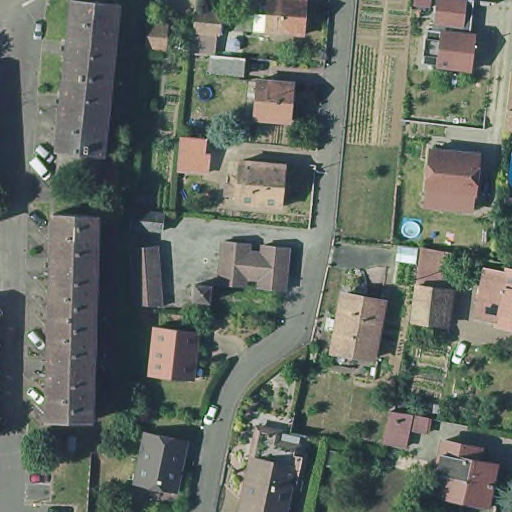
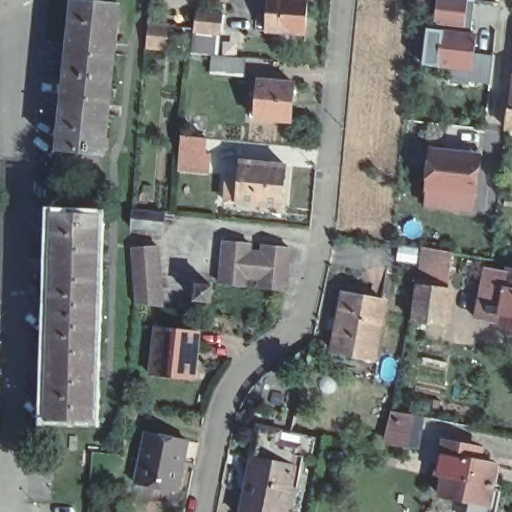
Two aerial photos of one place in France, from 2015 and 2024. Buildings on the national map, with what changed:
unchanged [(76,0),(122,0),(107,148),(62,144),(76,0)]
unchanged [(271,0),(310,0),(308,29),(270,26),(271,0)]
unchanged [(468,29),(477,29),(477,73),(439,73),(442,22),(434,21),(437,0),(468,0),(468,29)]
unchanged [(195,12),(219,16),(216,35),(192,31),(195,12)]
unchanged [(211,57),(240,59),(239,75),(209,73),(211,57)]
unchanged [(267,75),(302,78),(299,115),(263,112),(267,75)]
unchanged [(184,140),(210,142),(207,176),(181,174),(184,140)]
unchanged [(455,209),(429,206),(430,191),(429,191),(434,149),(460,152),(483,155),(478,197),(477,196),(466,195),(465,210),(455,209)]
unchanged [(230,181),(237,181),(237,175),(242,175),(244,160),(261,161),(261,159),(272,160),(272,162),(290,164),(286,204),(240,200),(240,193),(230,192),(230,181)]
unchanged [(57,208),(100,209),(94,415),(51,413),(57,208)]
unchanged [(131,209),(163,213),(162,226),(162,229),(129,227),(130,224),(131,209)]
unchanged [(227,280),(229,266),(230,252),(232,238),(260,240),(258,254),(257,269),(255,283),(227,280)]
unchanged [(268,276),(257,274),(260,248),(271,249),(272,242),(299,244),(297,258),(295,272),(294,286),(267,284),(268,276)]
unchanged [(425,242),(456,248),(451,283),(422,279),(425,242)]
unchanged [(138,302),(137,288),(135,275),(134,261),(134,257),(132,247),(134,247),(160,244),(161,259),(162,272),(164,286),(165,305),(143,303),(138,302)]
unchanged [(512,267),(512,265),(512,321),(501,318),(502,316),(480,312),(490,263),(512,267)]
unchanged [(205,279),(220,281),(218,296),(204,294),(205,279)]
unchanged [(446,321),(417,316),(422,279),(451,283),(446,321)]
unchanged [(334,312),(342,314),(347,288),(388,296),(378,353),(362,350),(359,363),(335,359),(340,324),(332,323),(334,312)]
unchanged [(160,321),(205,326),(200,374),(156,369),(160,321)]
unchanged [(389,409),(430,417),(427,432),(409,428),(405,445),(382,441),(389,409)]
unchanged [(261,425),(271,427),(279,429),(282,430),(280,441),(302,445),(298,466),(294,486),(288,512),(244,512),(260,427),(261,425)]
unchanged [(148,426),(190,435),(180,486),(138,477),(148,426)]
unchanged [(475,437),(473,450),(494,453),(490,472),(500,475),(494,509),(477,505),(476,512),(473,512),(462,510),(463,503),(459,502),(462,490),(439,485),(443,466),(436,464),(442,432),(475,437)]

